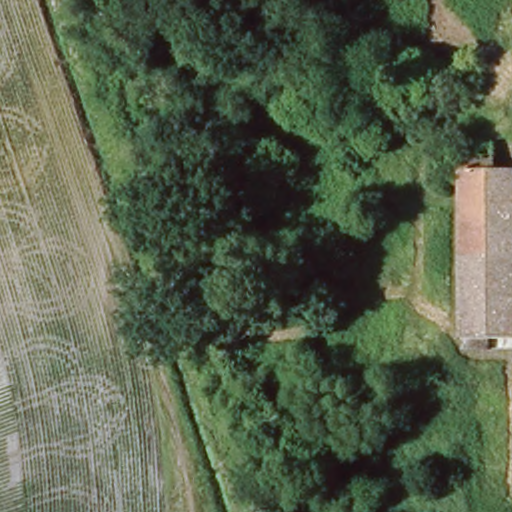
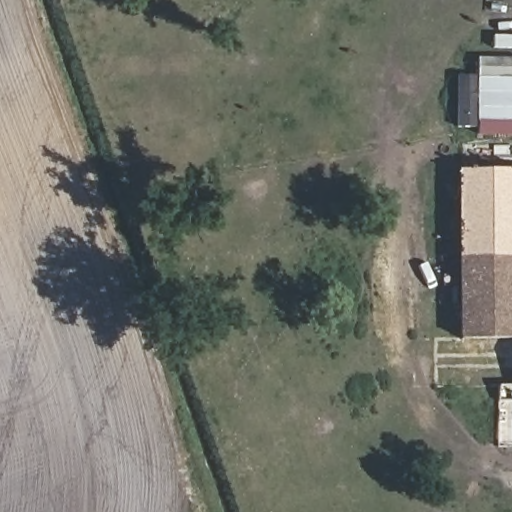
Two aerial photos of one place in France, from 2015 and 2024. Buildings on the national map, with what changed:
new [(477,136),(477,128),(457,128),(458,76),(477,77),(478,60),(512,60),(512,136),(477,136)]
unchanged [(451,150),(482,147),(484,170),(511,171),(512,198),(512,251),(455,251),(451,150)]
unchanged [(459,338),(455,251),(512,251),(512,337),(459,338)]

